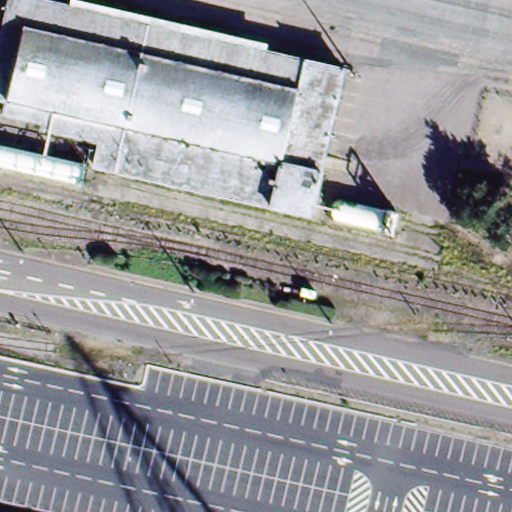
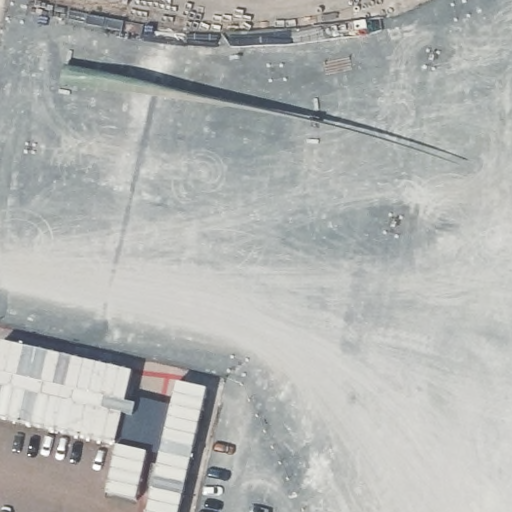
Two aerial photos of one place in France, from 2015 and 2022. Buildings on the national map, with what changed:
demolished [(353,60),(318,207),(101,156),(107,135),(50,122),(51,115),(10,105),(13,93),(0,90),(0,62),(15,0),(91,0),(353,60)]
demolished [(92,158),(89,172),(0,150),(0,143),(1,137),(92,158)]
demolished [(394,235),(342,223),(341,223),(340,223),(339,222),(338,221),(337,221),(336,220),(336,219),(335,218),(334,217),(334,216),(334,215),(334,214),(334,213),(334,212),(334,211),(334,210),(335,209),(335,208),(336,207),(336,206),(337,206),(338,205),(339,204),(340,204),(341,203),(342,203),(343,203),(344,203),(345,203),(346,203),(398,215),(394,235)]

